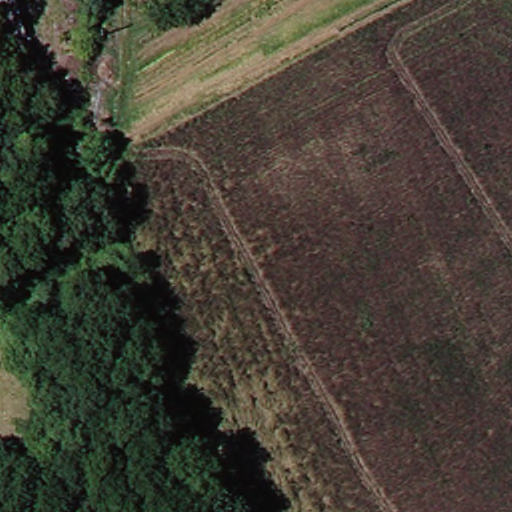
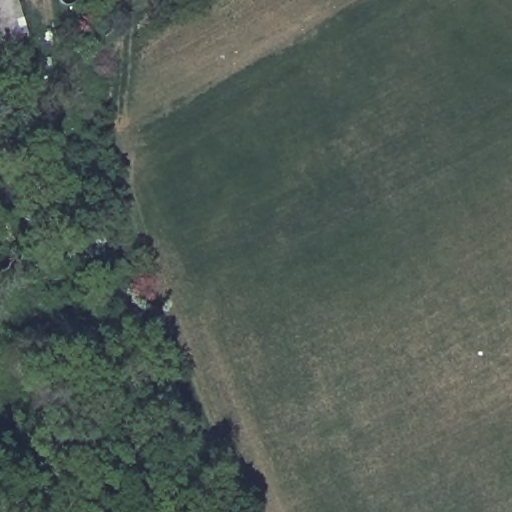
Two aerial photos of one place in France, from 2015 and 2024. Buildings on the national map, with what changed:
unchanged [(0,0),(9,0),(21,36),(0,42),(0,0)]

